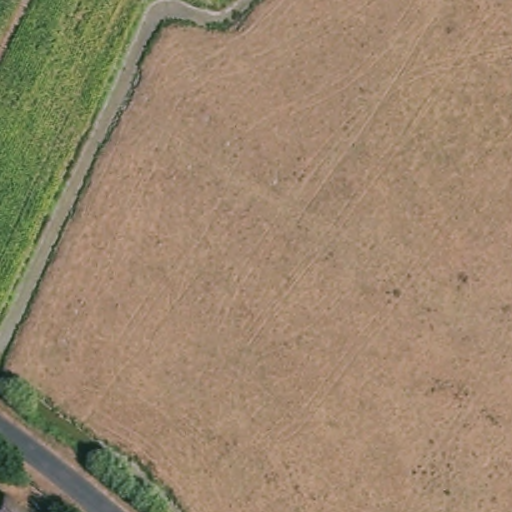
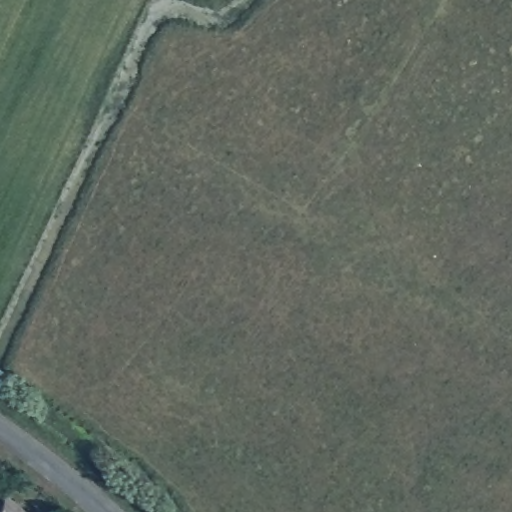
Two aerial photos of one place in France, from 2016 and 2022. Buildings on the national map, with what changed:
unchanged [(0,503),(0,502),(17,512),(0,512),(0,503)]

